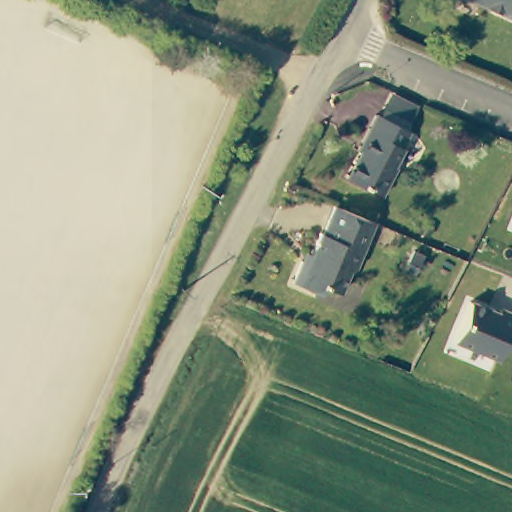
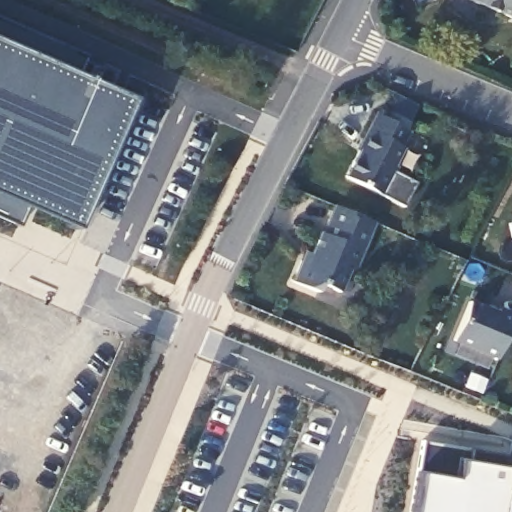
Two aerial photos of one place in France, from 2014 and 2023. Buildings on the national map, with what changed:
unchanged [(512,0),(512,15),(478,0),(512,0)]
new [(27,207),(19,226),(0,218),(0,18),(86,56),(77,76),(131,100),(77,230),(27,207)]
unchanged [(357,154),(377,116),(408,132),(401,148),(402,149),(393,168),(396,169),(381,197),(342,178),(354,152),(357,154)]
unchanged [(373,223),(355,270),(347,272),(337,293),(321,286),(317,293),(292,283),(301,261),(307,264),(319,235),(322,235),(334,206),(373,223)]
unchanged [(512,206),(512,210),(511,210),(512,206)]
unchanged [(407,270),(416,255),(423,258),(416,274),(407,270)]
unchanged [(450,340),(467,300),(497,311),(500,307),(512,313),(512,322),(497,358),(450,340)]
new [(418,472),(426,442),(472,450),(472,462),(512,469),(512,475),(506,512),(412,512),(418,472)]

